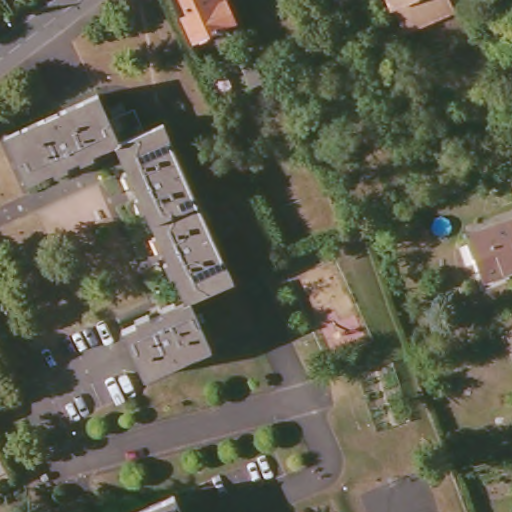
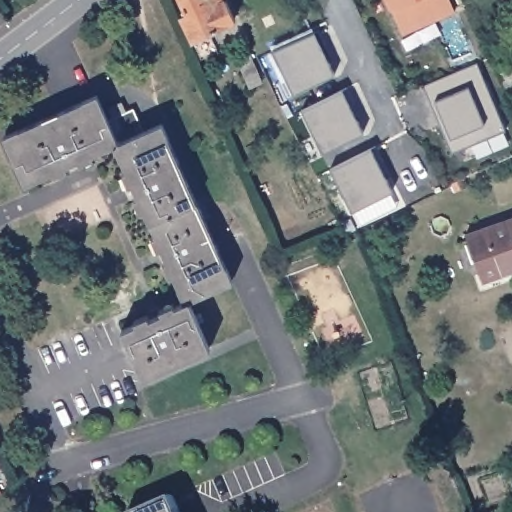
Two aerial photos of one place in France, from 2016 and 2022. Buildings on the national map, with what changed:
unchanged [(192,33),(182,11),(189,9),(184,0),(229,0),(235,14),(192,33)]
unchanged [(402,30),(389,0),(449,0),(453,8),(402,30)]
new [(294,94),(272,52),(315,31),(334,75),(294,94)]
unchanged [(266,84),(255,89),(240,60),(252,54),(266,84)]
new [(453,151),(425,85),(477,61),(504,130),(453,151)]
unchanged [(512,90),(504,93),(495,70),(508,65),(512,75),(512,90)]
new [(322,152),(302,111),(344,90),(364,132),(322,152)]
unchanged [(106,117),(130,108),(140,131),(159,123),(229,279),(187,298),(207,345),(141,375),(120,328),(182,300),(114,144),(25,184),(4,135),(95,94),(106,117)]
unchanged [(123,108),(110,115),(105,104),(119,99),(123,108)]
new [(330,169),(371,149),(392,190),(351,211),(330,169)]
unchanged [(503,268),(477,278),(464,239),(512,222),(512,272),(506,275),(503,268)]
unchanged [(177,512),(138,512),(170,497),(177,512)]

